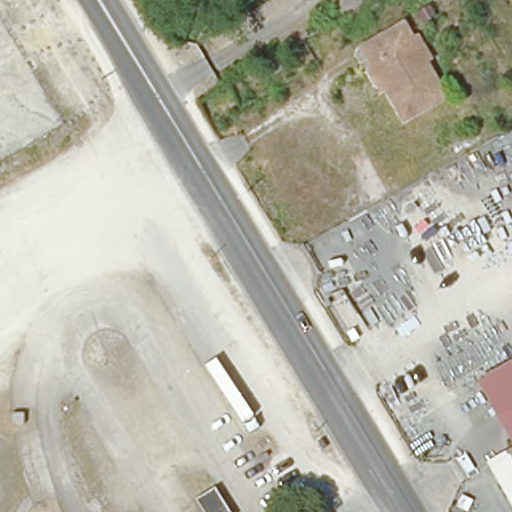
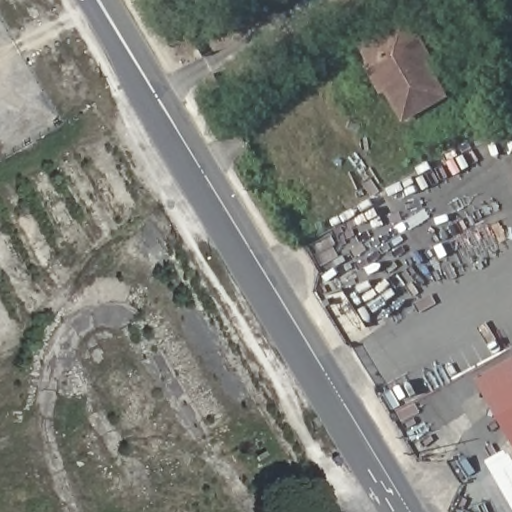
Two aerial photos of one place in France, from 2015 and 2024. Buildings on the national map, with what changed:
unchanged [(448,104),(407,129),(364,56),(405,32),(415,48),(420,45),(433,67),(428,70),(428,71),(448,104)]
unchanged [(512,357),(512,443),(473,378),(512,357)]
unchanged [(512,508),(484,460),(512,446),(512,508)]
demolished [(215,487),(231,512),(205,512),(196,498),(215,487)]

